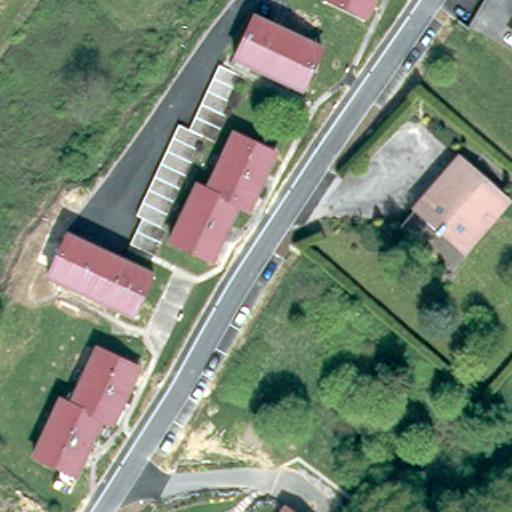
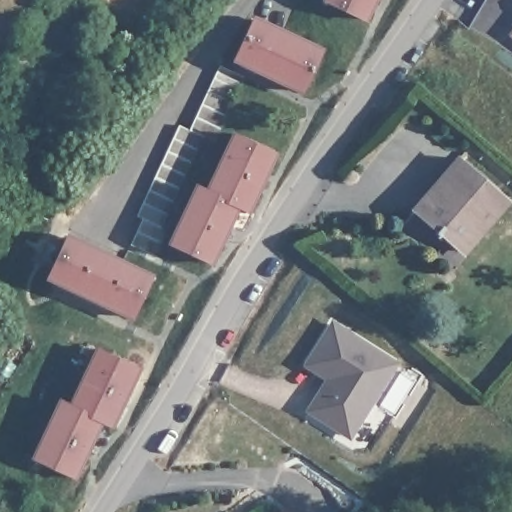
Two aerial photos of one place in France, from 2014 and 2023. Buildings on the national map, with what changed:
unchanged [(329,0),(379,0),(370,19),(329,0)]
unchanged [(255,17),(255,19),(283,32),(322,50),(302,90),(235,57),(255,17)]
unchanged [(131,245),(143,219),(137,215),(180,125),(190,130),(204,100),(220,67),(245,78),(215,141),(205,137),(163,227),(168,230),(156,257),(130,246),(131,245)]
unchanged [(207,190),(235,135),(274,154),(248,210),(240,206),(212,262),(172,242),(198,186),(207,190)]
unchanged [(507,201),(464,251),(414,210),(458,158),(507,201)]
unchanged [(133,317),(48,276),(67,237),(122,262),(152,277),(133,317)]
new [(302,366),(331,319),(400,363),(349,440),(304,412),(323,380),(302,366)]
unchanged [(138,367),(112,424),(102,420),(75,476),(34,458),(62,400),(70,403),(98,349),(138,367)]
unchanged [(512,473),(512,480),(507,483),(498,473),(507,467),(512,473)]

